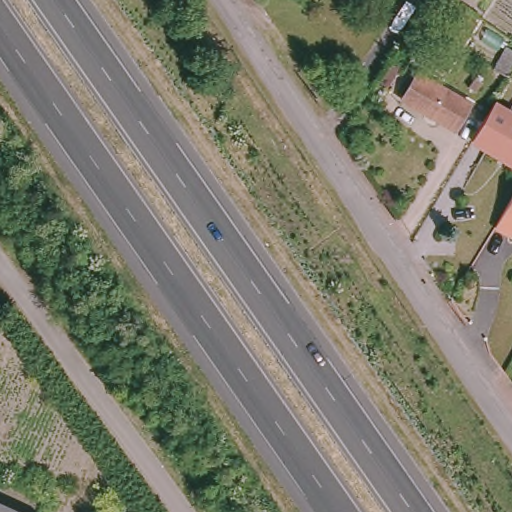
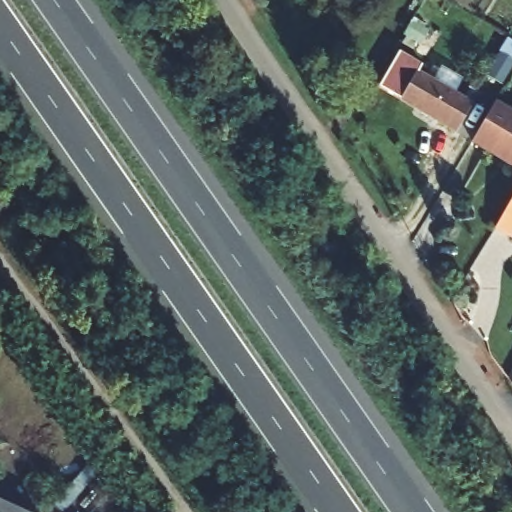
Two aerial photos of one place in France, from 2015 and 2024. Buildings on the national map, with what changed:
unchanged [(512,37),(512,64),(500,56),(512,37)]
unchanged [(452,129),(398,99),(414,71),(467,102),(452,129)]
unchanged [(496,106),(512,115),(512,166),(474,144),(496,106)]
unchanged [(512,201),(512,237),(497,228),(512,201)]
unchanged [(0,504),(18,512),(0,512),(0,504)]

